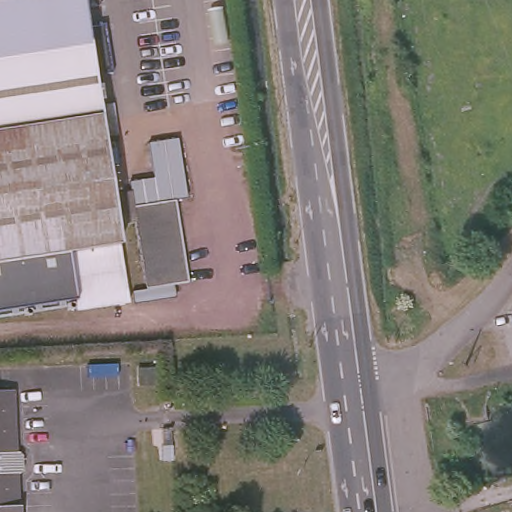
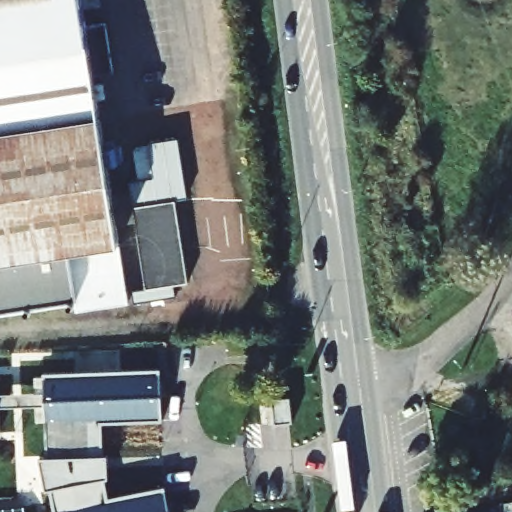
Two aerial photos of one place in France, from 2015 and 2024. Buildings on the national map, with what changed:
unchanged [(82,21),(102,17),(110,66),(90,69),(97,112),(113,109),(118,139),(102,141),(130,306),(80,314),(78,304),(0,317),(0,0),(78,0),(82,21)]
demolished [(116,145),(120,170),(108,172),(104,147),(116,145)]
unchanged [(142,183),(136,150),(173,145),(182,204),(176,205),(133,210),(129,185),(142,183)]
unchanged [(176,205),(188,287),(176,289),(146,294),(133,210),(176,205)]
new [(40,489),(35,460),(43,460),(43,377),(160,372),(161,424),(99,426),(101,456),(104,477),(50,488),(40,489)]
demolished [(20,512),(0,512),(0,388),(13,387),(20,512)]
new [(104,477),(109,499),(163,489),(169,512),(55,512),(50,488),(104,477)]

